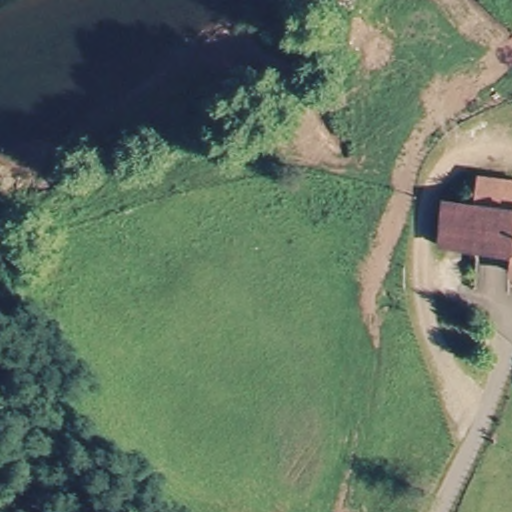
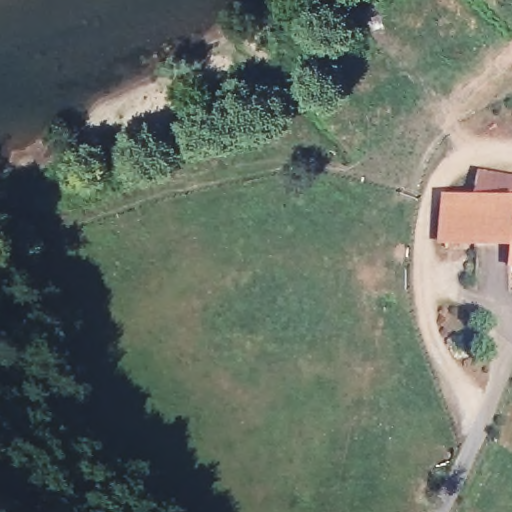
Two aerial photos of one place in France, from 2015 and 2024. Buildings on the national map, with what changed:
unchanged [(485,177),(512,182),(512,210),(479,205),(485,177)]
unchanged [(479,205),(512,210),(512,252),(445,245),(451,201),(479,205)]
unchanged [(511,271),(512,262),(512,271),(511,271)]

